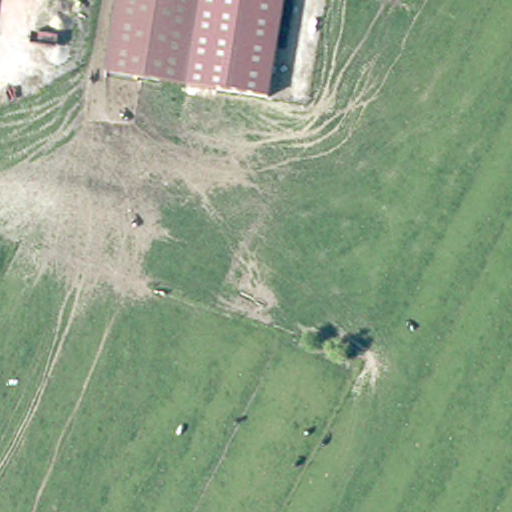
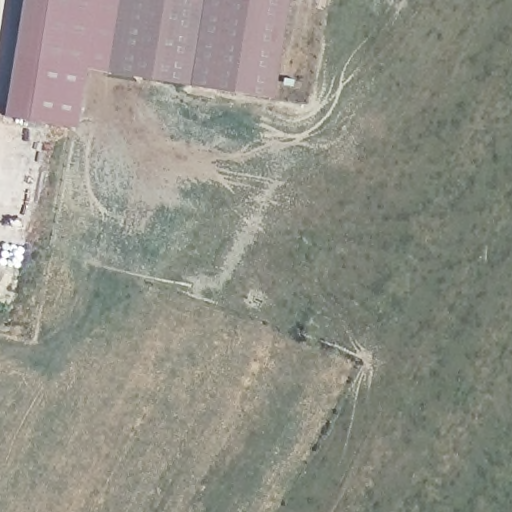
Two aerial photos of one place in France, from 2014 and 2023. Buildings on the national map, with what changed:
new [(83,66),(73,125),(1,114),(18,0),(116,0),(106,71),(83,66)]
unchanged [(270,95),(106,71),(116,0),(285,0),(270,95)]

